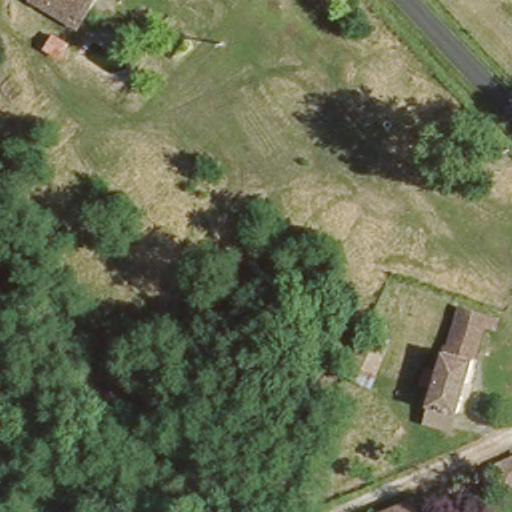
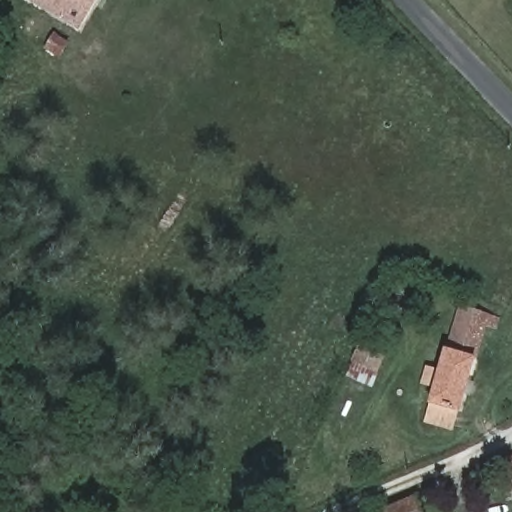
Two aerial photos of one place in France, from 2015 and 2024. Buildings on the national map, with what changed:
unchanged [(28,1),(29,0),(93,0),(76,30),(28,1)]
unchanged [(493,320),(495,322),(490,334),(479,329),(451,419),(419,410),(430,377),(452,306),(484,316),(493,320)]
unchanged [(371,378),(346,371),(355,348),(378,356),(371,378)]
unchanged [(512,455),(512,480),(505,483),(501,474),(490,479),(486,468),(512,455)]
unchanged [(424,494),(429,512),(387,512),(384,502),(424,494)]

